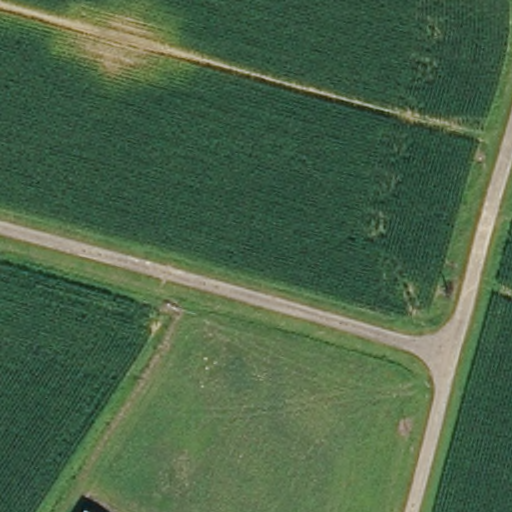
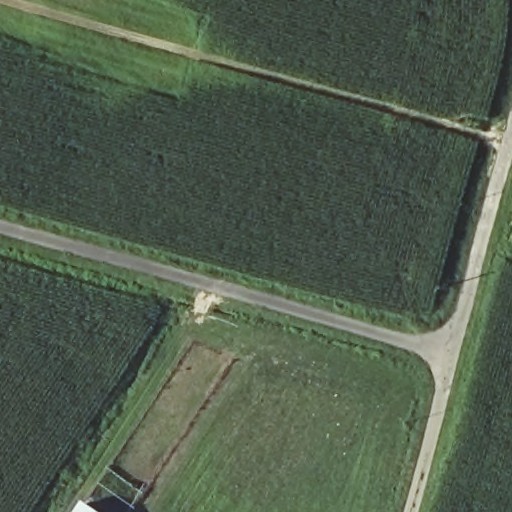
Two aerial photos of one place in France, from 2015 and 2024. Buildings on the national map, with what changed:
unchanged [(96,512),(81,512),(86,505),(96,512)]

